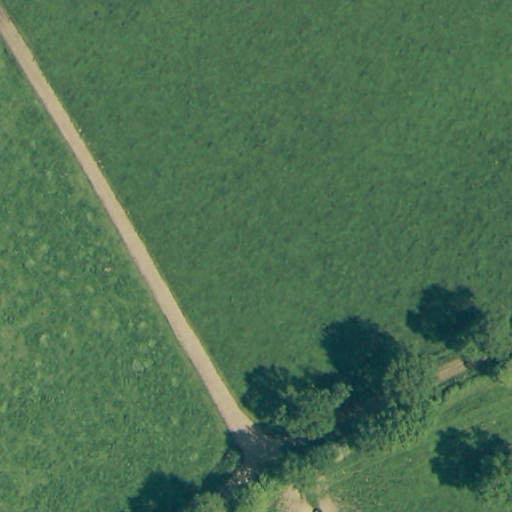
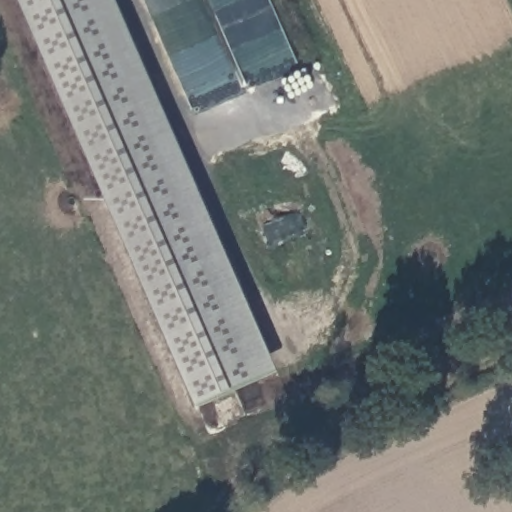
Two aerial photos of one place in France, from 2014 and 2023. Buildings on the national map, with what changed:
new [(277,372),(195,407),(18,0),(114,0),(277,372)]

